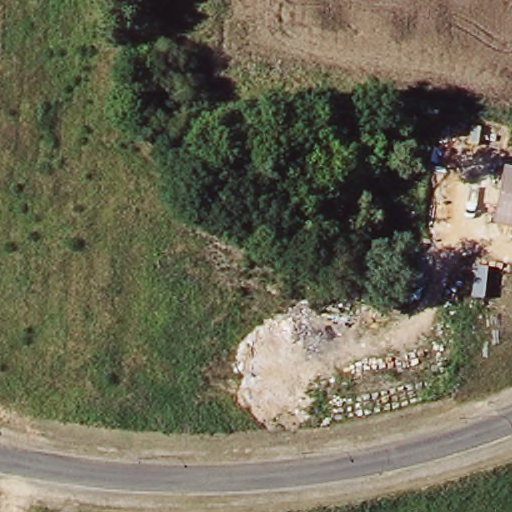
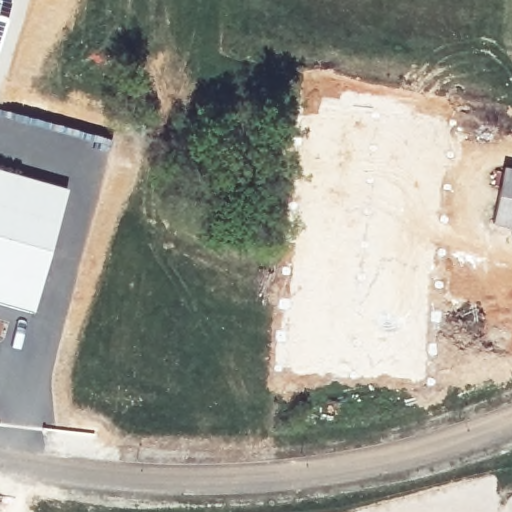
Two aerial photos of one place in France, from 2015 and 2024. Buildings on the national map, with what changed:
new [(23,19),(18,17),(10,43),(15,45),(0,95),(0,0),(28,0),(23,19)]
unchanged [(505,166),(512,168),(512,225),(495,222),(505,166)]
new [(72,189),(37,312),(0,301),(0,169),(72,189)]

